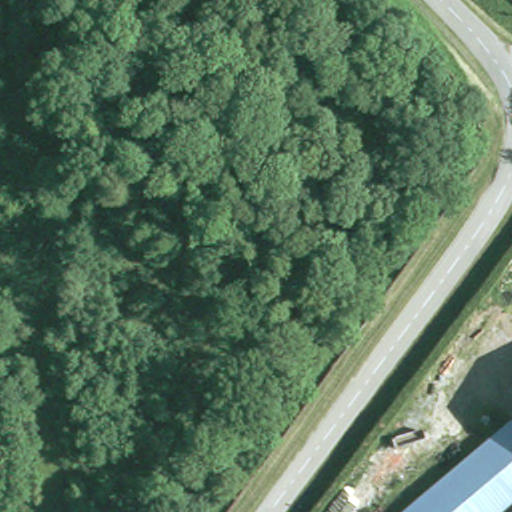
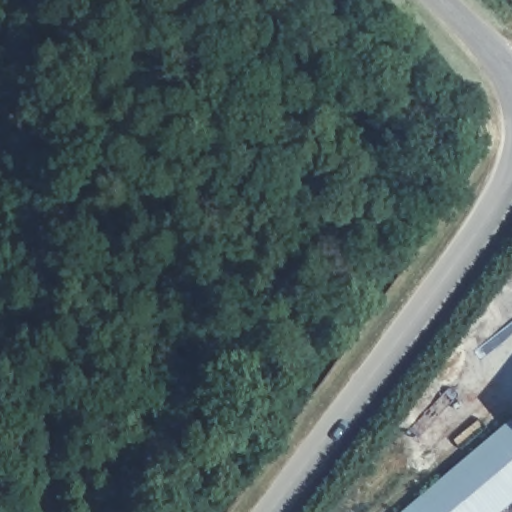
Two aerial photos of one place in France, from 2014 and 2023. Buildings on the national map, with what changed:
unchanged [(509,424),(512,428),(512,499),(497,512),(403,512),(509,424)]

